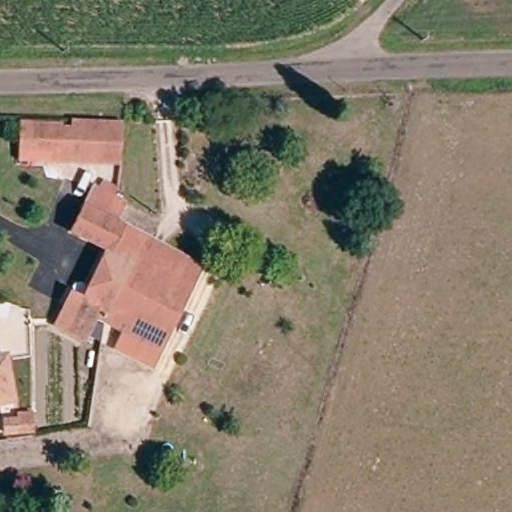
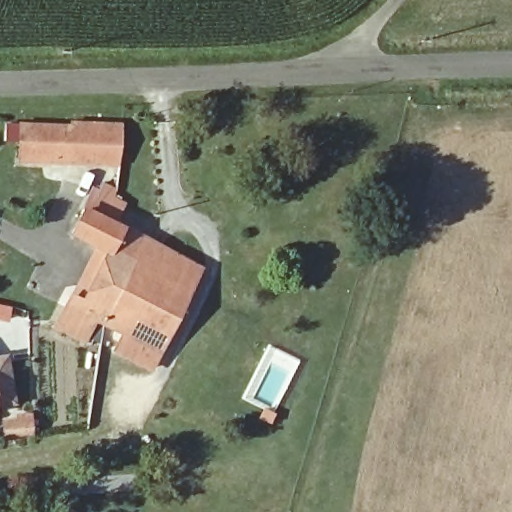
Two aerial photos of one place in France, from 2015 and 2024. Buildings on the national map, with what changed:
unchanged [(116,166),(19,158),(21,119),(122,117),(116,166)]
unchanged [(117,331),(100,323),(91,320),(82,337),(52,321),(66,291),(81,299),(100,261),(106,247),(90,239),(73,230),(98,180),(113,188),(111,195),(126,203),(114,224),(122,228),(139,239),(195,268),(158,350),(150,367),(109,349),(117,331)]
unchanged [(0,365),(12,363),(18,415),(4,416),(4,425),(0,426),(0,365)]
unchanged [(43,443),(18,446),(15,427),(42,424),(43,443)]

